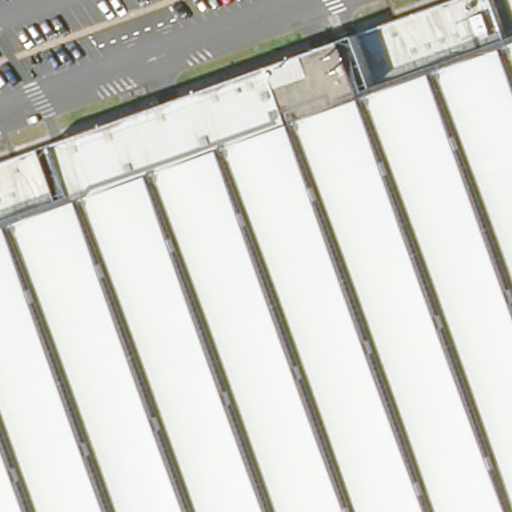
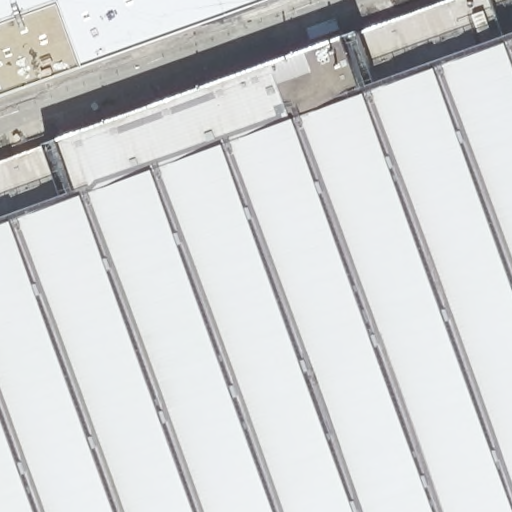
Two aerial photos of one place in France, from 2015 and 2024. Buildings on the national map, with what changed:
new [(0,100),(0,0),(276,0),(0,100)]
unchanged [(512,512),(0,512),(0,168),(466,0),(488,0),(503,39),(512,37),(512,512)]

